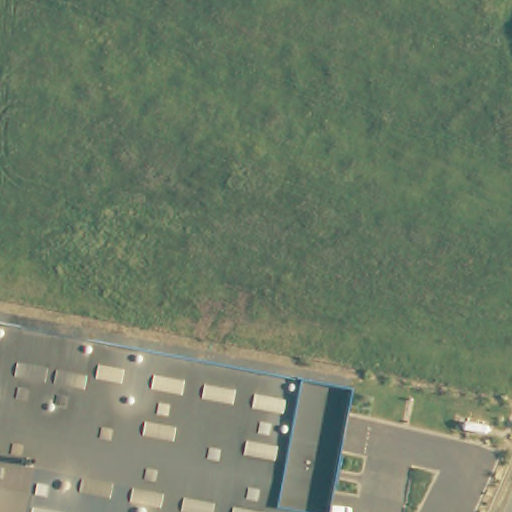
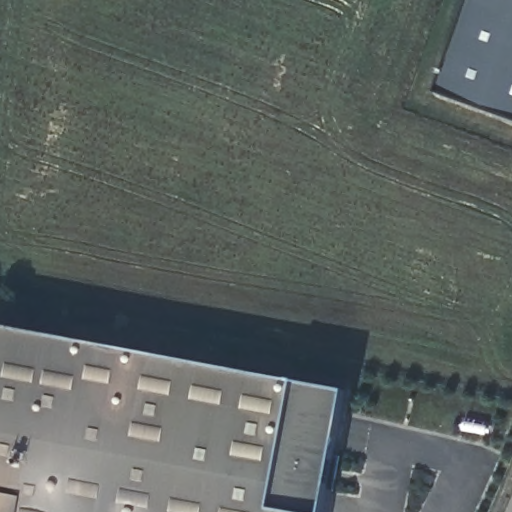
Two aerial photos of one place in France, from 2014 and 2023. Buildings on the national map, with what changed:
new [(512,125),(431,95),(466,0),(512,0),(512,125)]
unchanged [(345,391),(321,512),(0,512),(0,326),(345,391)]

